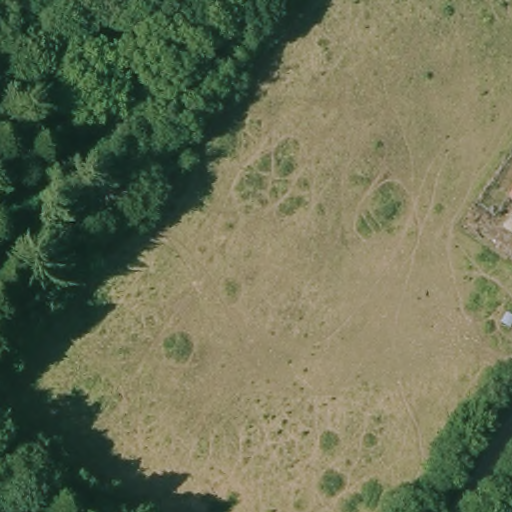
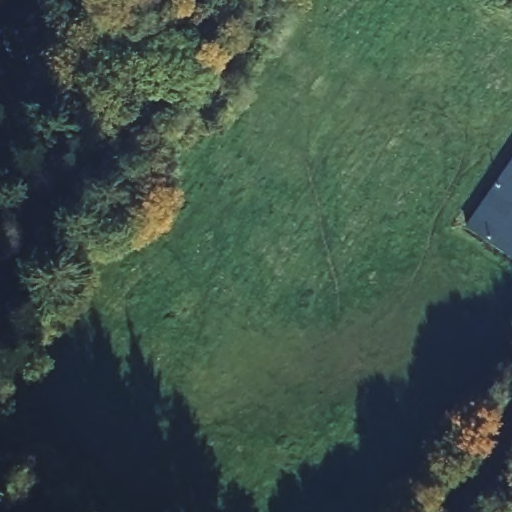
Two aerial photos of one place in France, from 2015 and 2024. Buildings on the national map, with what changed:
new [(512,258),(467,226),(512,162),(512,258)]
unchanged [(178,185),(144,225),(129,211),(158,172),(178,185)]
demolished [(512,192),(512,198),(509,196),(512,192)]

